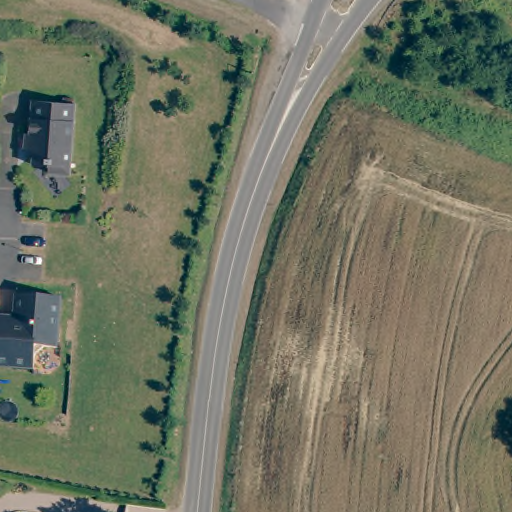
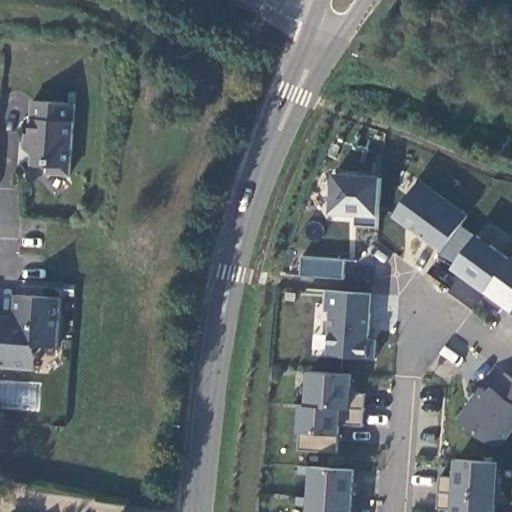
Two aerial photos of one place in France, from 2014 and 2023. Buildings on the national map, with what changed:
unchanged [(47,175),(47,168),(31,166),(32,150),(22,150),(23,135),(28,136),(30,102),(73,105),(68,176),(47,175)]
new [(355,225),(355,215),(330,214),(333,173),(381,176),(377,217),(376,226),(355,225)]
new [(469,215),(441,252),(393,216),(419,179),(469,215)]
new [(486,291),(453,269),(477,235),(511,259),(512,258),(512,311),(504,304),(499,311),(482,298),(486,291)]
new [(331,312),(326,311),(327,290),(373,293),(370,339),(377,340),(376,359),(368,358),(327,355),(331,312)]
unchanged [(16,296),(61,300),(58,349),(45,348),(36,357),(34,370),(0,368),(0,318),(16,320),(16,296)]
new [(362,426),(339,425),(339,436),(336,452),(300,450),(305,433),(298,433),(300,405),(306,405),(308,372),(352,375),(351,395),(364,395),(362,426)]
new [(512,379),(512,430),(499,446),(457,419),(481,386),(488,391),(502,372),(512,379)]
new [(440,477),(453,479),(455,460),(499,463),(496,512),(451,512),(451,508),(439,507),(440,477)]
new [(356,471),(353,512),(307,512),(310,467),(356,471)]

